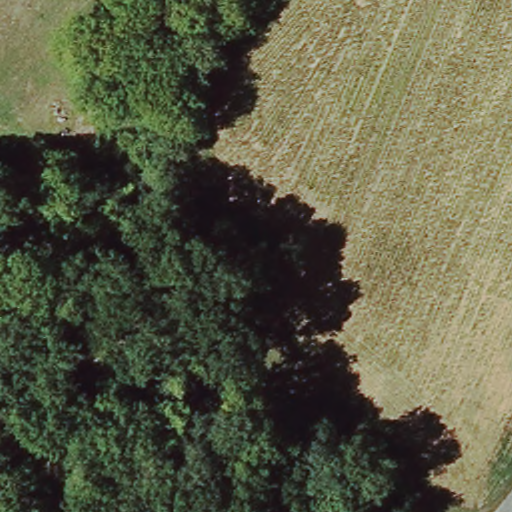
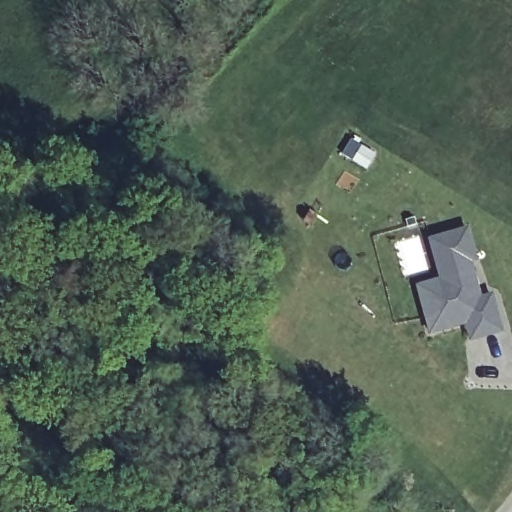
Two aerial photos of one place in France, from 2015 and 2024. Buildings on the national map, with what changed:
new [(436,277),(425,237),(469,224),(480,262),(475,264),(482,294),(492,291),(504,332),(468,342),(462,325),(427,335),(413,283),(436,277)]

